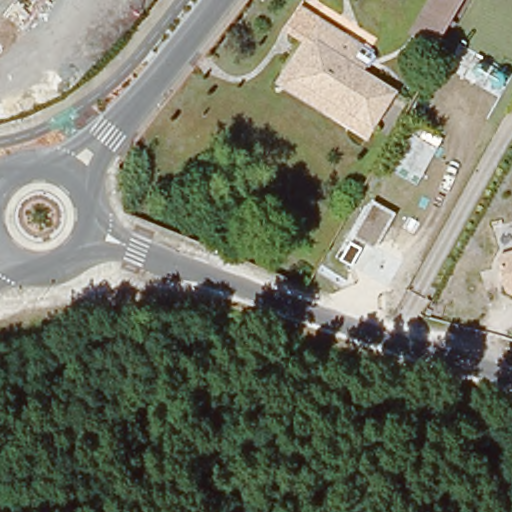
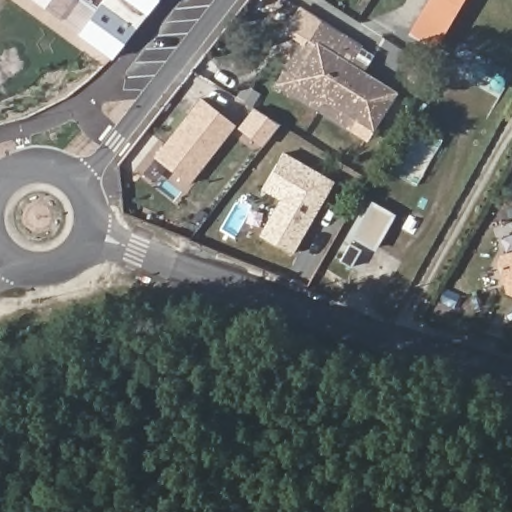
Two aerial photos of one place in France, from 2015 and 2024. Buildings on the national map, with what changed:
new [(115,58),(78,37),(31,0),(161,0),(115,58)]
unchanged [(438,48),(411,31),(428,0),(465,0),(438,48)]
unchanged [(302,5),(375,55),(358,78),(355,75),(358,70),(344,60),(350,51),(318,30),(309,45),(285,32),(302,5)]
unchanged [(309,45),(318,30),(350,51),(344,60),(358,70),(355,75),(358,78),(386,97),(364,133),(285,82),(309,45)]
new [(189,185),(154,157),(201,98),(236,126),(189,185)]
unchanged [(435,138),(409,181),(386,168),(412,124),(435,138)]
new [(292,255),(259,236),(280,200),(262,190),(284,152),(335,182),(292,255)]
unchanged [(353,237),(373,202),(396,216),(376,250),(353,237)]
unchanged [(502,253),(512,250),(512,291),(506,287),(498,259),(502,253)]

